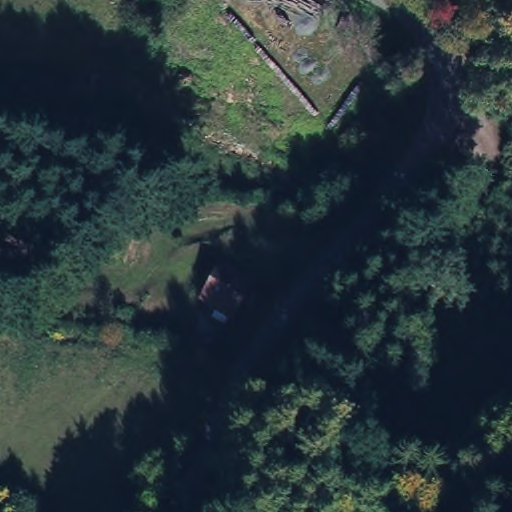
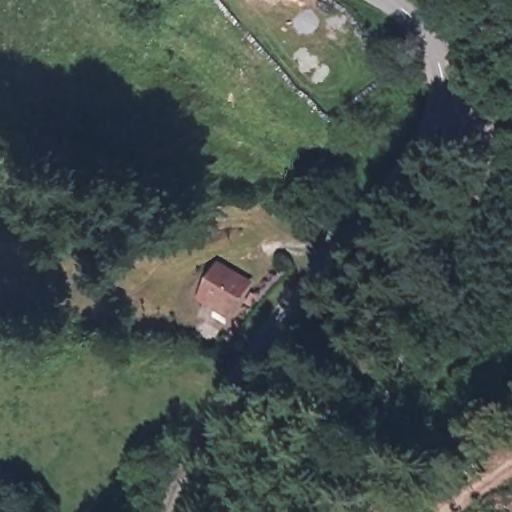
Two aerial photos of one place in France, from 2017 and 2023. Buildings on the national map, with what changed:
unchanged [(275,236),(267,231),(272,222),(280,226),(275,236)]
unchanged [(227,315),(200,300),(217,269),(244,284),(227,315)]

